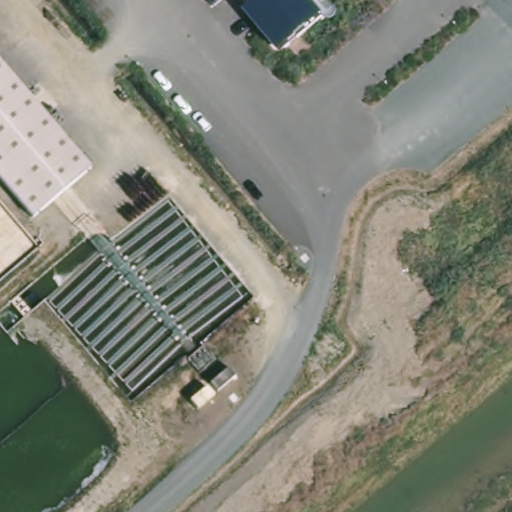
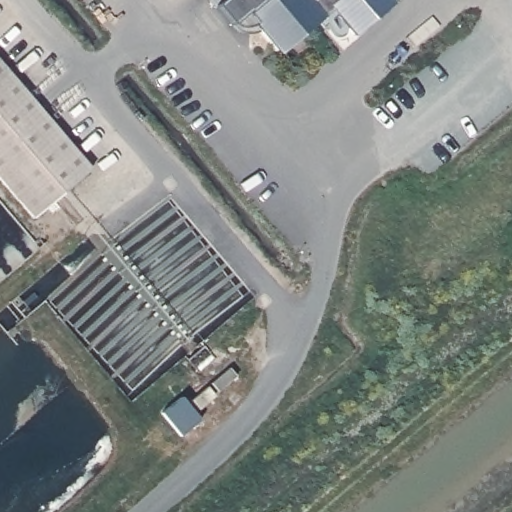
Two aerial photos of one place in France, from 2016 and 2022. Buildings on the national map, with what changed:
unchanged [(207,0),(223,0),(214,8),(207,0)]
unchanged [(278,56),(242,14),(257,0),(312,0),(324,16),(278,56)]
new [(391,0),(392,1),(355,34),(331,8),(324,16),(312,0),(391,0)]
unchanged [(0,183),(0,63),(90,169),(32,221),(0,183)]

